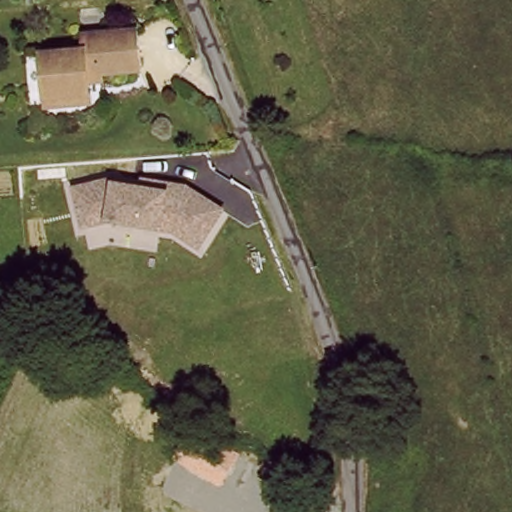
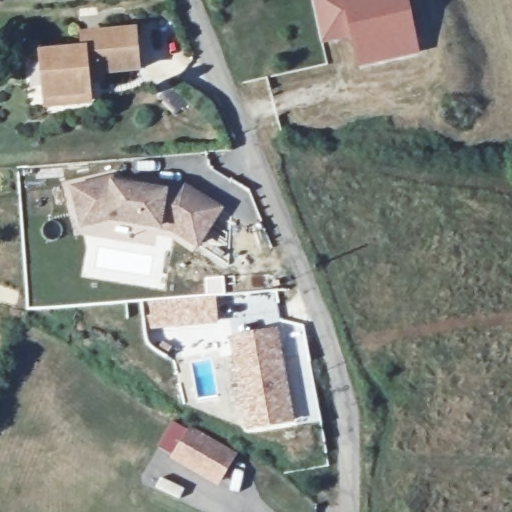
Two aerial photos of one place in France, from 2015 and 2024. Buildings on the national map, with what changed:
new [(357,68),(350,36),(320,43),(312,0),(409,0),(422,55),(357,68)]
unchanged [(86,33),(136,31),(138,70),(89,73),(89,94),(47,95),(44,51),(86,49),(86,33)]
unchanged [(104,177),(133,184),(137,174),(180,184),(223,210),(199,251),(165,231),(102,219),(76,225),(67,183),(104,177)]
new [(145,331),(143,303),(215,298),(217,325),(145,331)]
new [(278,327),(295,424),(246,433),(229,336),(278,327)]
new [(198,426),(241,451),(226,477),(183,452),(198,426)]

